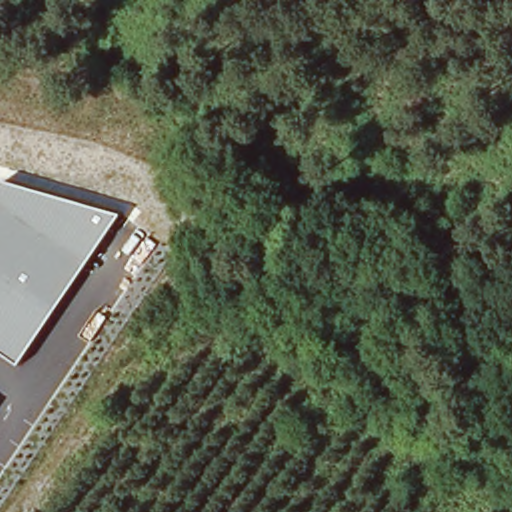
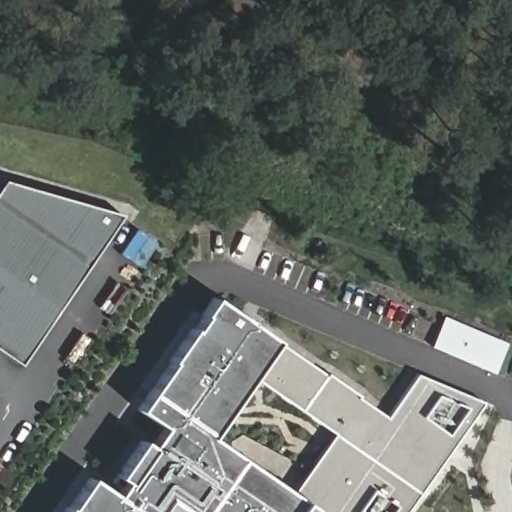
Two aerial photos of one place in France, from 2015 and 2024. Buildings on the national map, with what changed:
unchanged [(0,350),(0,187),(5,181),(122,215),(20,364),(0,350)]
new [(61,504),(65,505),(86,474),(112,492),(117,485),(110,479),(137,438),(148,445),(161,426),(135,408),(214,297),(326,375),(327,372),(386,416),(416,373),(484,401),(405,512),(156,512),(154,510),(153,512),(56,512),(61,504)]
new [(442,318),(506,345),(496,372),(431,346),(442,318)]

